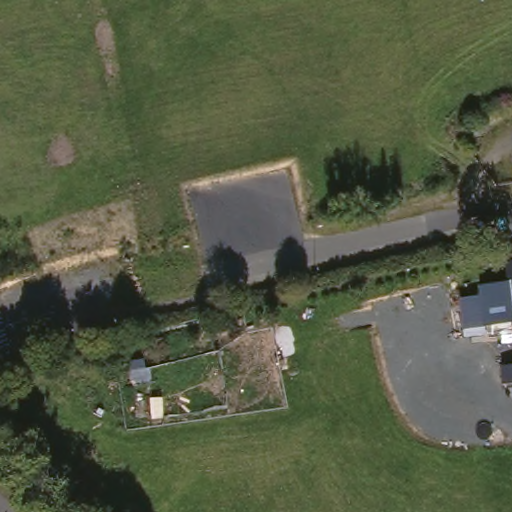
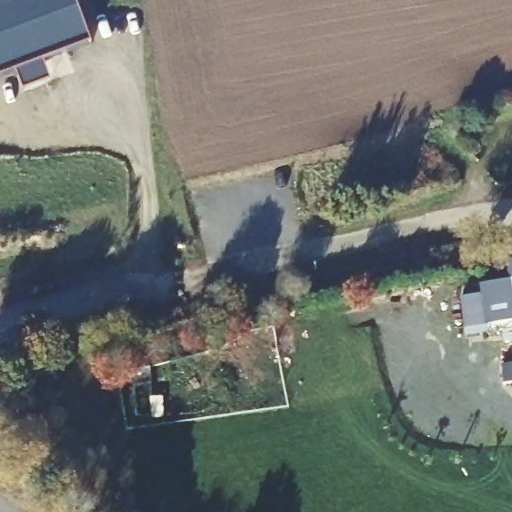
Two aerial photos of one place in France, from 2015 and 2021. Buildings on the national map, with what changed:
new [(0,0),(74,0),(91,45),(43,63),(50,82),(24,91),(16,71),(0,78),(0,0)]
unchanged [(482,318),(479,277),(507,275),(506,259),(512,258),(512,369),(509,317),(482,318)]

